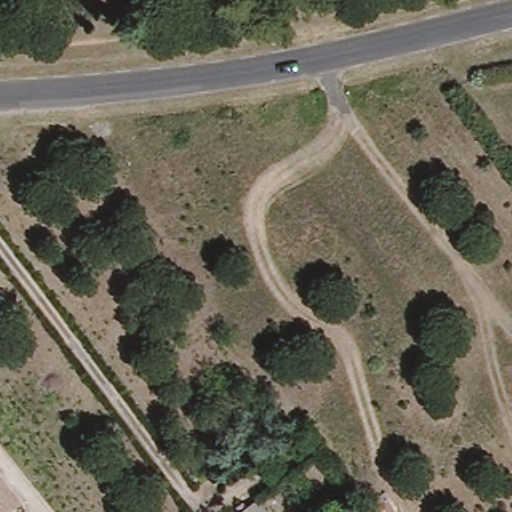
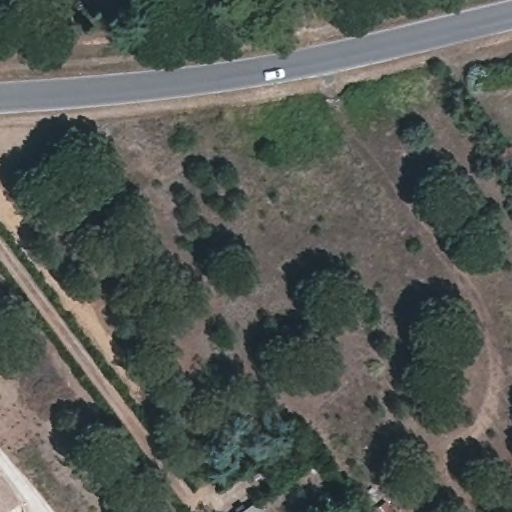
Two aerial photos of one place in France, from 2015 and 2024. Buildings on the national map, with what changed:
unchanged [(3,512),(0,512),(0,462),(27,493),(3,512)]
unchanged [(264,495),(276,512),(239,512),(264,495)]

